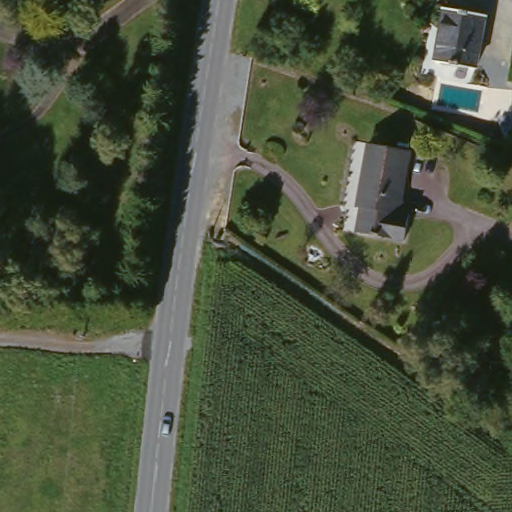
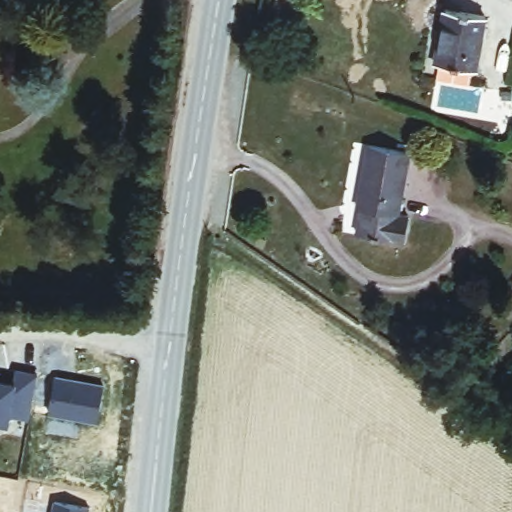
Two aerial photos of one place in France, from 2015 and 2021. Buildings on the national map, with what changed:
unchanged [(428,62),(442,11),(484,21),(470,72),(428,62)]
unchanged [(400,212),(408,212),(403,244),(357,234),(361,207),(357,206),(370,140),(409,148),(400,212)]
unchanged [(508,300),(512,294),(512,302),(508,300)]
new [(13,371),(34,374),(27,417),(7,415),(5,427),(0,426),(0,382),(10,384),(13,371)]
new [(54,378),(103,386),(97,422),(48,415),(54,378)]
new [(88,507),(87,512),(51,512),(52,502),(88,507)]

